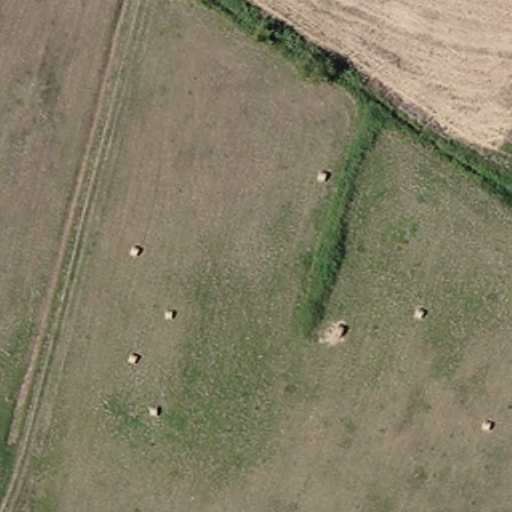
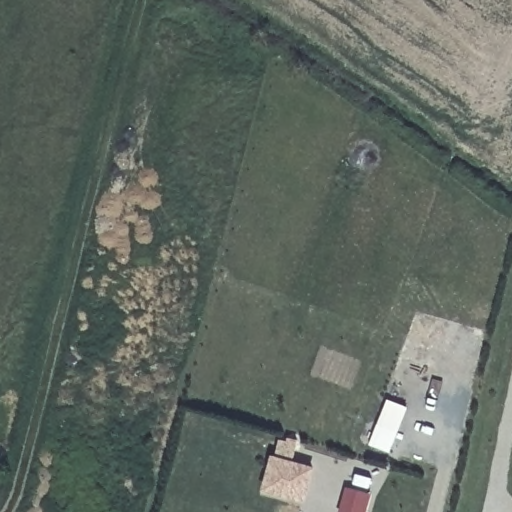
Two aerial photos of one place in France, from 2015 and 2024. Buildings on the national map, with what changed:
new [(272,454),(276,455),(280,438),(288,441),(289,436),(300,440),(295,460),(315,466),(306,502),(263,491),(272,454)]
new [(339,512),(346,487),(372,493),(368,512),(339,512)]

